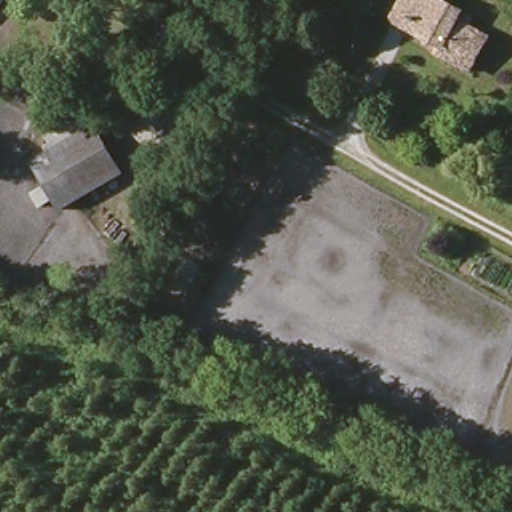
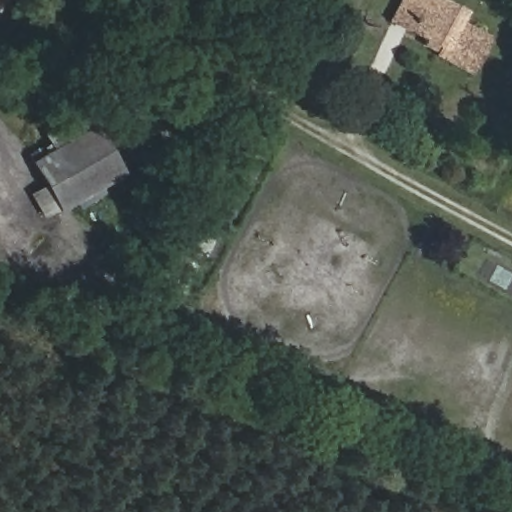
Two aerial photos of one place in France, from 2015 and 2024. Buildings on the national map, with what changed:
unchanged [(4,7),(0,5),(0,0),(8,0),(4,7)]
unchanged [(427,42),(409,34),(393,26),(406,0),(430,0),(462,16),(457,25),(489,41),(473,73),(441,57),(424,49),(427,42)]
unchanged [(119,177),(68,205),(39,152),(91,124),(119,177)]

